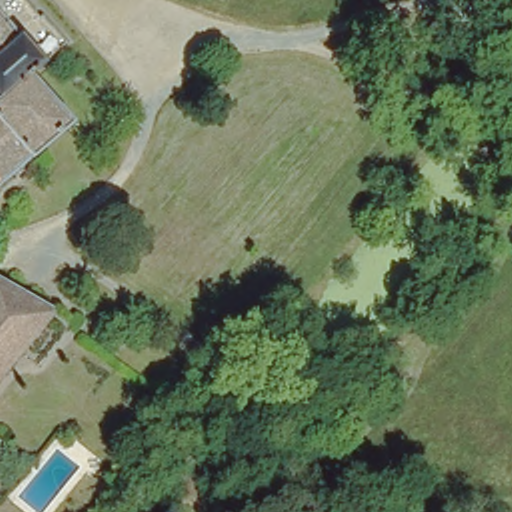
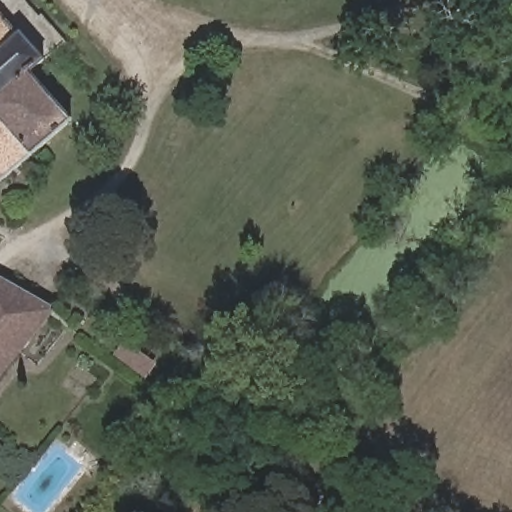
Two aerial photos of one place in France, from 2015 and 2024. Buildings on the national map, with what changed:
unchanged [(14,39),(37,65),(21,76),(63,124),(0,181),(0,27),(12,40),(14,39)]
unchanged [(0,371),(0,287),(46,313),(0,371)]

